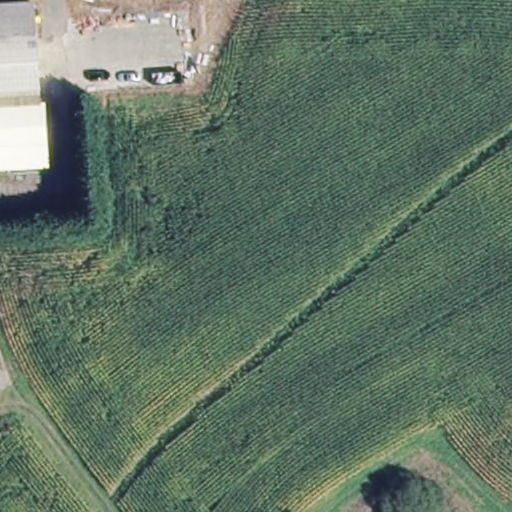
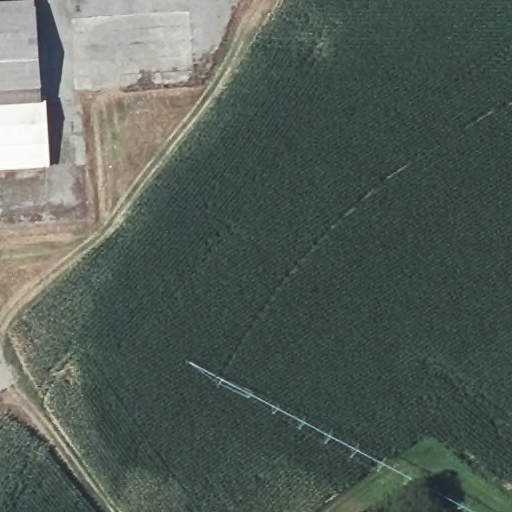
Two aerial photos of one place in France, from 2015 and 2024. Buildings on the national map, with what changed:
unchanged [(36,102),(40,166),(0,168),(0,8),(30,7),(36,102)]

